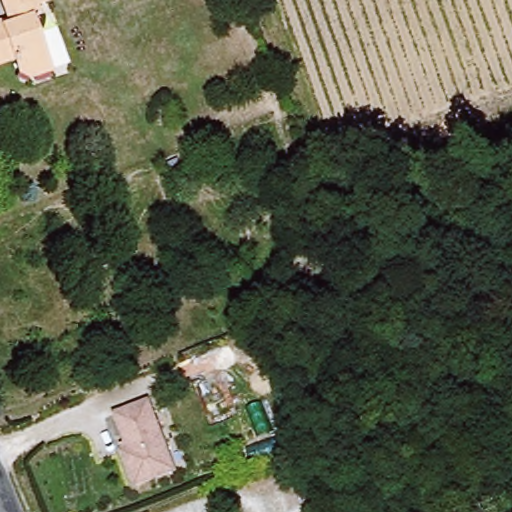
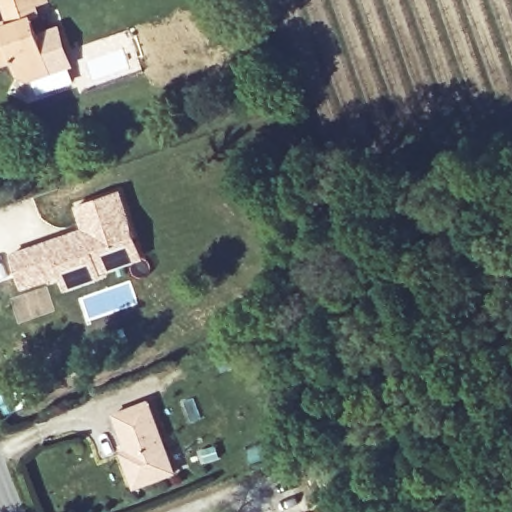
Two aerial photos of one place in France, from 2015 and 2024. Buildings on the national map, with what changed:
unchanged [(17,79),(11,62),(0,66),(0,24),(3,29),(15,26),(6,0),(43,0),(44,4),(36,7),(39,16),(32,19),(53,74),(25,84),(17,79)]
new [(11,254),(83,227),(75,205),(122,190),(145,258),(102,273),(104,277),(66,290),(61,276),(23,288),(11,254)]
unchanged [(136,487),(124,454),(128,452),(114,414),(149,401),(177,472),(136,487)]

